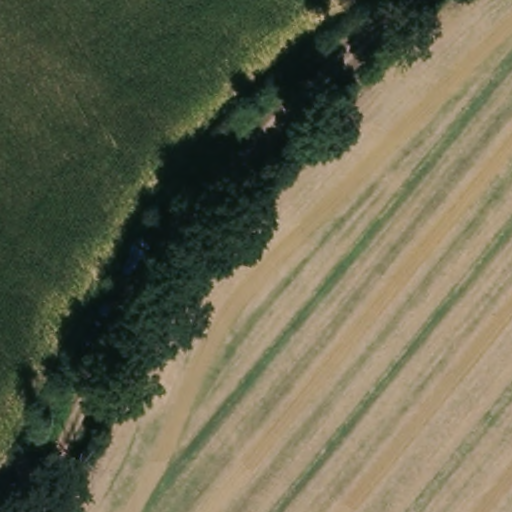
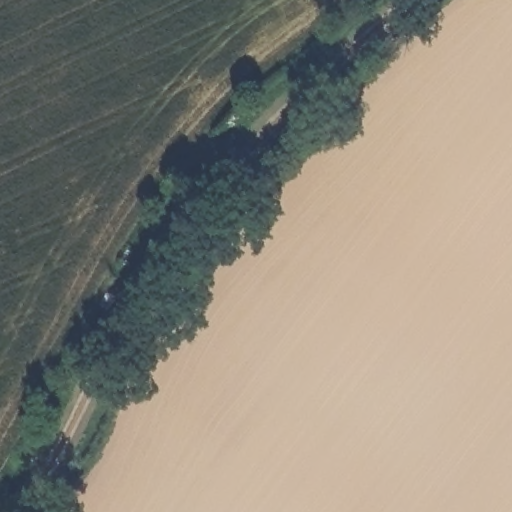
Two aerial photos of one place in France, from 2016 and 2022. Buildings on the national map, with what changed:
[]

